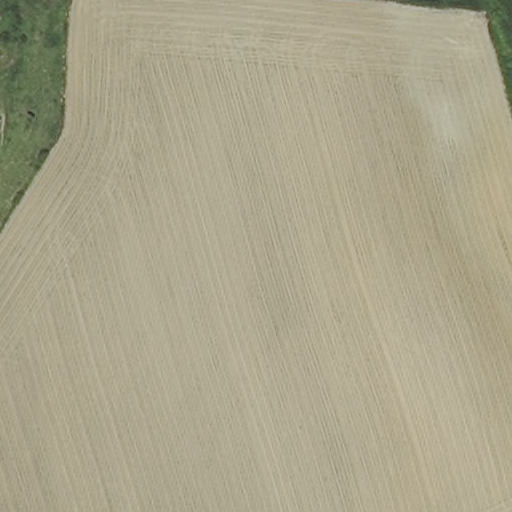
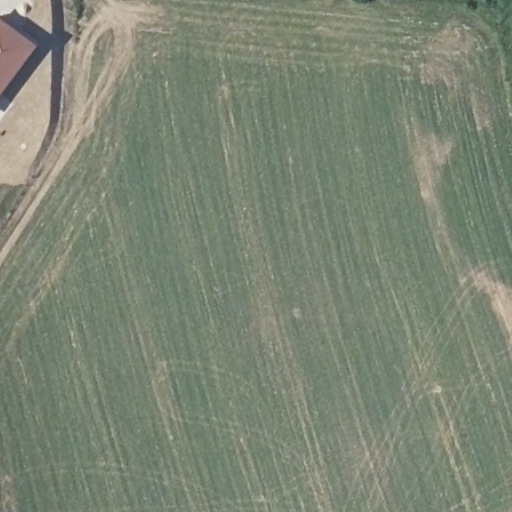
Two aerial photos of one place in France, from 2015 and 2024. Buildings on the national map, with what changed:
new [(0,93),(0,19),(35,44),(0,93)]

